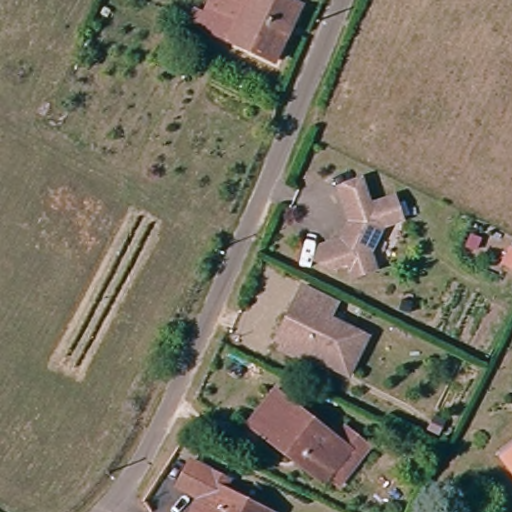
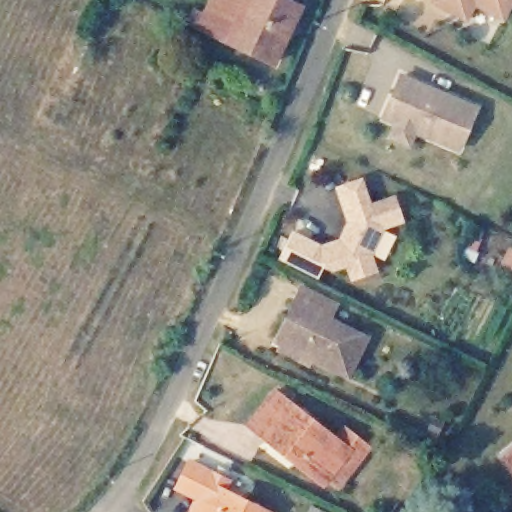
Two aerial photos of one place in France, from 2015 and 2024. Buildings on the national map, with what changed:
unchanged [(213,36),(198,29),(211,0),(278,0),(298,10),(273,66),(213,36)]
new [(431,0),(512,0),(512,7),(505,22),(474,7),(467,21),(429,4),(431,0)]
new [(385,137),(390,125),(381,121),(400,72),(480,108),(460,154),(417,136),(411,150),(385,137)]
unchanged [(363,207),(388,198),(396,221),(378,225),(363,254),(370,271),(347,278),(343,265),(328,269),(309,260),(315,248),(336,242),(344,223),(333,189),(354,181),(363,207)]
unchanged [(335,305),(329,319),(364,336),(346,371),(282,341),(298,307),(292,303),(299,288),(335,305)]
unchanged [(342,444),(320,473),(273,431),(269,435),(246,417),(273,386),(330,434),(342,444)]
unchanged [(338,422),(368,446),(334,486),(320,473),(342,444),(330,434),(338,422)]
unchanged [(497,454),(512,442),(512,472),(497,454)]
unchanged [(224,495),(260,512),(210,512),(213,505),(200,500),(197,506),(174,495),(187,469),(228,484),(224,495)]

